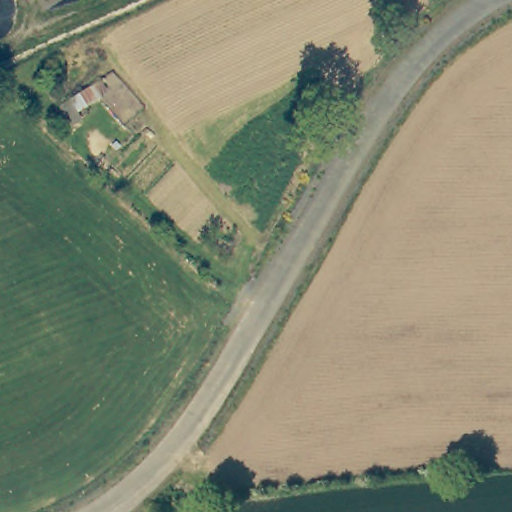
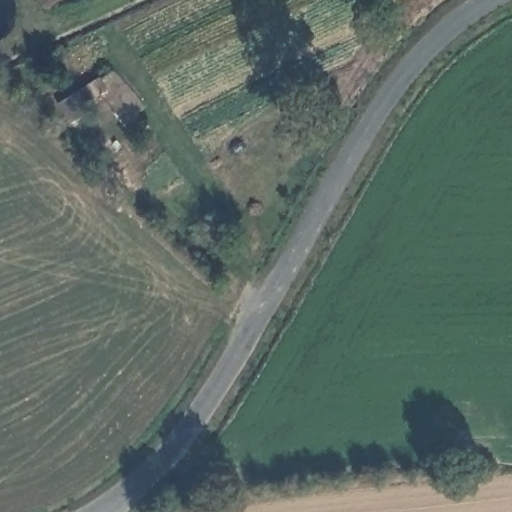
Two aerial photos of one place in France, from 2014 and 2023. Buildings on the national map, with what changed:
[]

